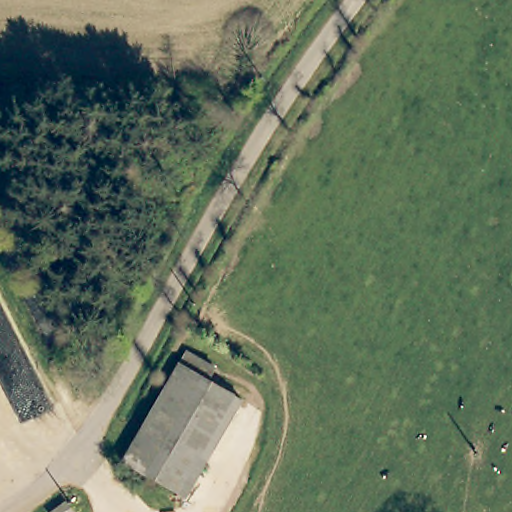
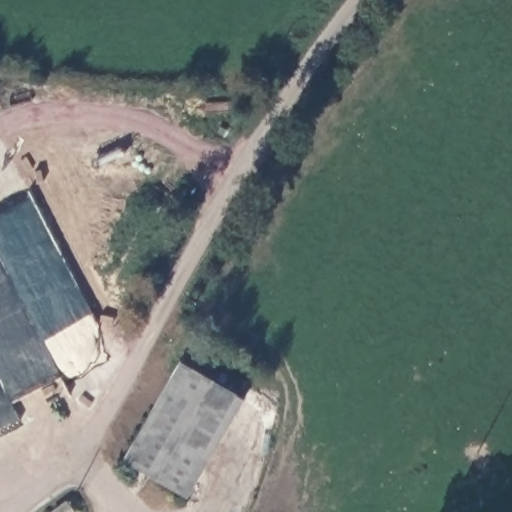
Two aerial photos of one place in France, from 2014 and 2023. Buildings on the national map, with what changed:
unchanged [(182,499),(127,468),(185,369),(192,357),(218,372),(211,385),(239,401),(182,499)]

